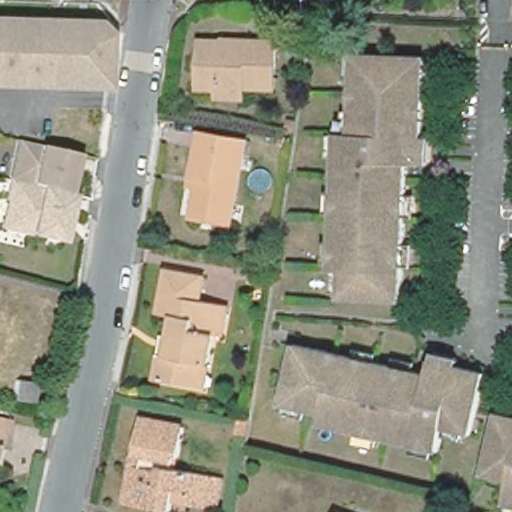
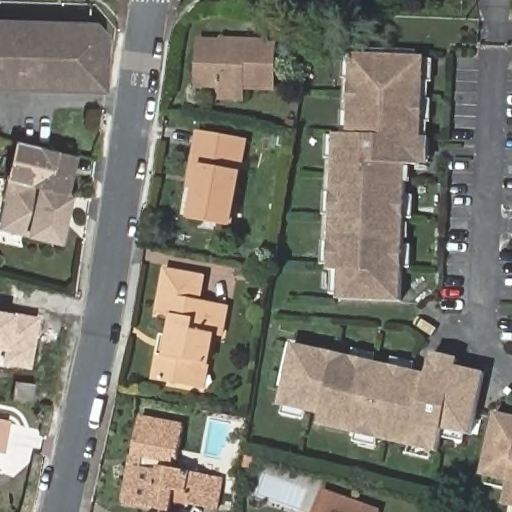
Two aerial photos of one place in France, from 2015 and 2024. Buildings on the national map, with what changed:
unchanged [(94,22),(105,35),(104,92),(0,88),(0,20),(94,22)]
unchanged [(212,85),(193,84),(197,39),(219,40),(219,34),(234,35),(257,36),(272,37),(271,60),(269,83),(238,81),(238,87),(238,94),(211,92),(212,85)]
unchanged [(434,145),(434,170),(426,169),(426,171),(411,171),(405,307),(343,304),(344,277),(334,276),(339,139),(353,140),(356,60),(427,63),(426,144),(434,145)]
unchanged [(17,140),(77,152),(68,196),(8,183),(17,140)]
unchanged [(198,185),(204,157),(207,142),(212,142),(248,151),(233,232),(197,226),(203,195),(196,194),(198,185)]
unchanged [(8,183),(68,196),(73,197),(60,247),(0,235),(0,224),(8,183)]
unchanged [(148,380),(153,354),(157,333),(163,335),(167,316),(151,312),(159,270),(190,276),(199,277),(197,289),(196,300),(221,305),(216,336),(208,333),(201,366),(196,389),(186,387),(148,380)]
unchanged [(265,288),(248,285),(251,271),(268,273),(265,288)]
new [(30,368),(0,364),(3,349),(0,348),(0,309),(15,312),(39,316),(30,368)]
unchanged [(475,441),(448,433),(443,457),(324,430),(326,420),(284,409),(298,350),(431,380),(434,366),(436,366),(438,358),(464,365),(462,372),(489,378),(475,441)]
unchanged [(14,378),(35,383),(30,402),(10,398),(14,378)]
unchanged [(225,435),(229,417),(243,420),(239,437),(225,435)]
unchanged [(2,418),(0,428),(0,418),(2,418)]
unchanged [(500,418),(512,421),(512,485),(487,479),(500,418)]
unchanged [(185,512),(183,512),(185,501),(170,497),(167,512),(137,512),(125,510),(119,508),(129,461),(138,423),(182,433),(174,478),(207,486),(220,488),(214,512),(185,512)]
unchanged [(512,494),(512,510),(509,509),(512,494)]

